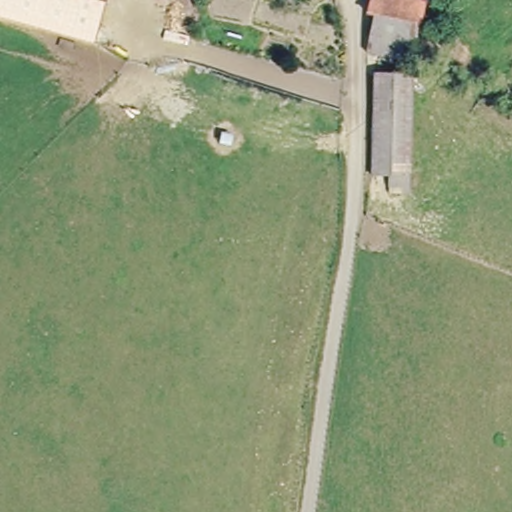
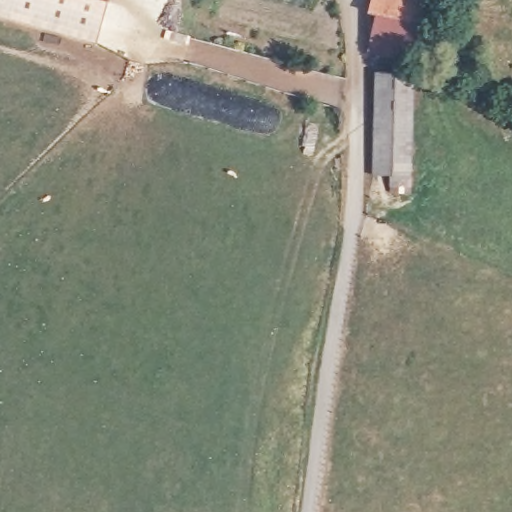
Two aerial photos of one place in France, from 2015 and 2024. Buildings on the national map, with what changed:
unchanged [(104,0),(92,43),(0,19),(0,0),(104,0)]
unchanged [(372,14),(360,13),(364,0),(418,0),(407,61),(367,55),(372,14)]
unchanged [(409,197),(388,196),(389,178),(372,176),(377,74),(415,76),(409,197)]

